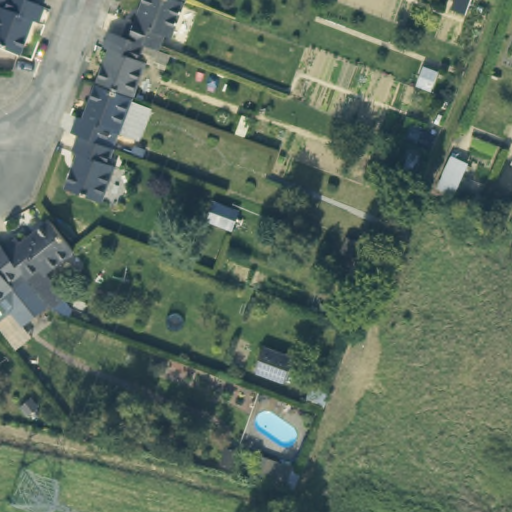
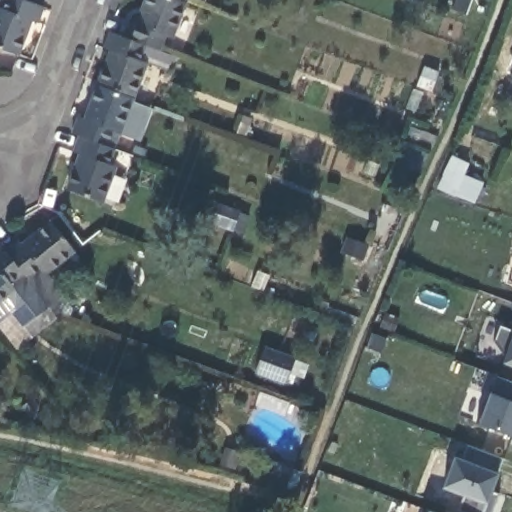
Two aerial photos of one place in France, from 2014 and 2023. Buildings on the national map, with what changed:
unchanged [(30,21),(17,56),(0,49),(0,9),(1,10),(5,0),(24,0),(29,2),(43,7),(37,23),(30,21)]
unchanged [(24,0),(30,0),(29,2),(24,0)]
unchanged [(123,33),(128,16),(135,19),(143,0),(184,0),(171,33),(164,30),(158,46),(144,41),(123,33)]
unchanged [(451,10),(455,0),(471,0),(466,15),(451,10)]
unchanged [(97,81),(110,46),(103,43),(108,28),(123,33),(144,41),(138,56),(145,59),(132,94),(97,81)]
unchanged [(415,86),(422,66),(437,73),(430,92),(415,86)]
unchanged [(78,131),(71,129),(77,113),(84,116),(97,81),(132,94),(131,98),(149,105),(137,135),(120,129),(114,145),(78,131)]
unchanged [(108,161),(115,163),(102,198),(66,185),(79,150),(72,147),(78,131),(114,145),(108,161)]
demolished [(461,159),(445,196),(427,188),(445,152),(461,159)]
new [(439,190),(451,157),(467,164),(462,175),(484,183),(475,204),(439,190)]
unchanged [(27,274),(8,250),(22,239),(26,245),(55,222),(79,252),(50,275),(70,300),(56,311),(32,280),(27,274)]
unchanged [(0,325),(0,247),(4,244),(5,246),(8,250),(27,274),(14,285),(18,291),(28,303),(0,325)]
new [(495,342),(500,328),(512,332),(512,367),(502,363),(495,342)]
unchanged [(255,372),(263,349),(293,360),(286,383),(255,372)]
new [(489,391),(494,378),(512,383),(512,436),(477,424),(489,391)]
new [(512,437),(512,445),(509,444),(512,437)]
new [(454,458),(461,461),(466,446),(503,459),(491,492),(499,495),(492,512),(458,512),(457,512),(463,495),(443,488),(454,458)]
unchanged [(284,488),(252,476),(258,457),(291,469),(284,488)]

